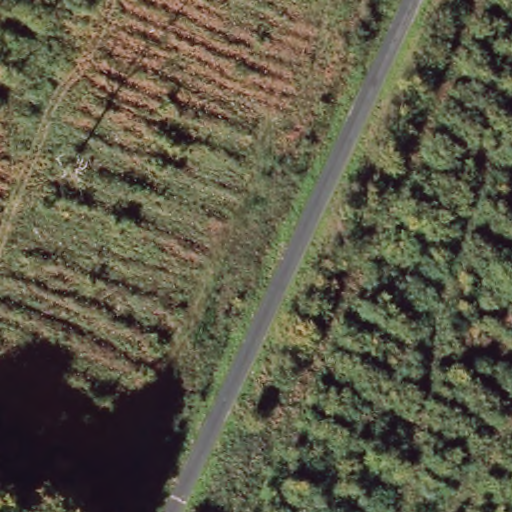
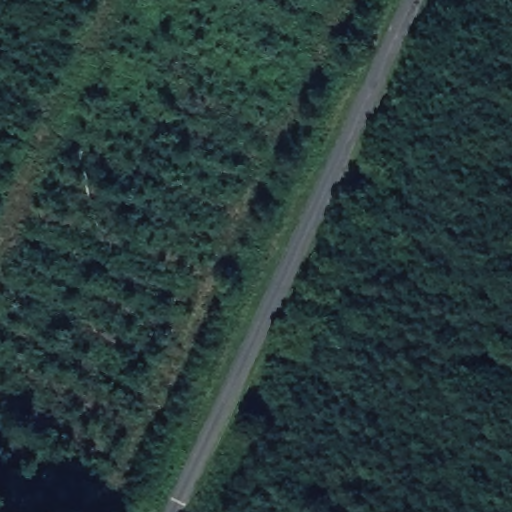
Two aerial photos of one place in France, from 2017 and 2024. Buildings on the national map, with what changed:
[]

